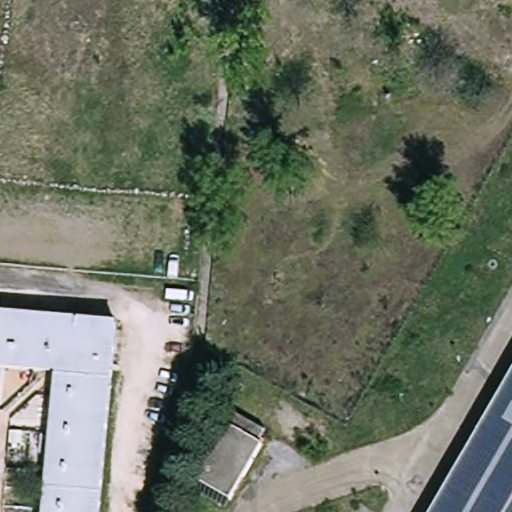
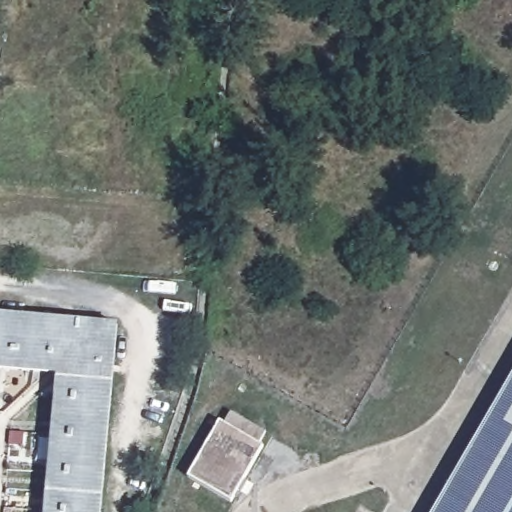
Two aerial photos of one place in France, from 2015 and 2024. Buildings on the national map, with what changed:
unchanged [(0,310),(122,327),(100,512),(55,512),(70,369),(0,360),(0,310)]
unchanged [(512,378),(512,512),(435,512),(512,378)]
unchanged [(192,475),(226,420),(267,445),(234,500),(192,475)]

